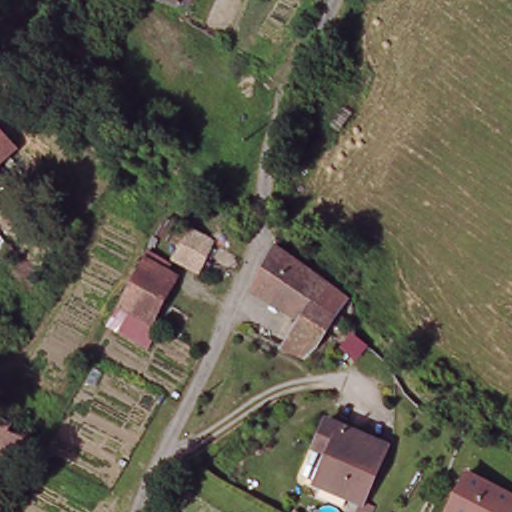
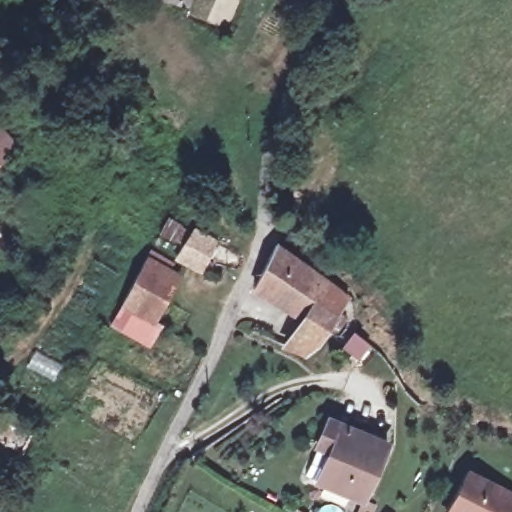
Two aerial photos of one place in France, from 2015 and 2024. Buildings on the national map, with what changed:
unchanged [(188,6),(173,2),(173,0),(190,0),(188,6)]
unchanged [(16,150),(0,164),(0,132),(16,150)]
unchanged [(166,222),(191,235),(193,229),(231,252),(221,269),(228,273),(223,281),(216,278),(214,281),(176,259),(181,251),(156,240),(166,222)]
unchanged [(269,245),(349,284),(351,287),(327,343),(310,347),(290,341),(301,319),(249,292),(269,245)]
unchanged [(172,265),(166,273),(193,287),(171,327),(178,330),(165,353),(113,323),(148,252),(172,265)]
unchanged [(19,467),(0,456),(0,412),(35,431),(19,467)]
unchanged [(368,500),(317,488),(327,454),(314,451),(321,429),(359,439),(366,443),(383,448),(368,500)]
unchanged [(512,512),(444,512),(466,467),(512,492),(512,512)]

